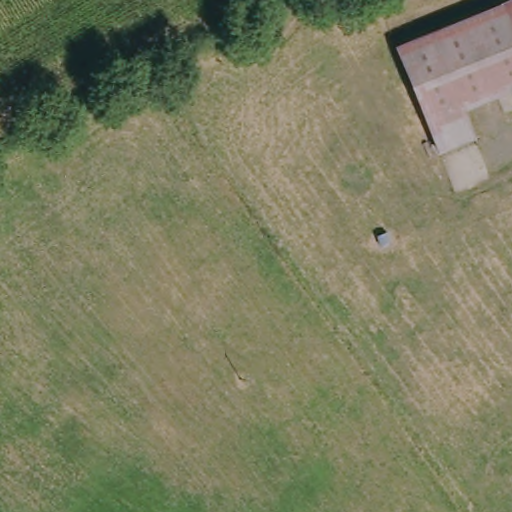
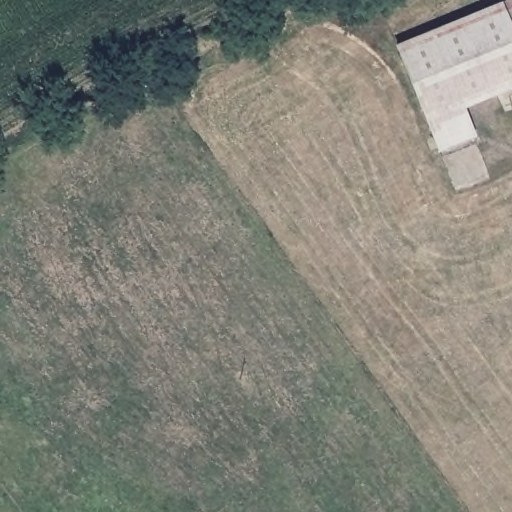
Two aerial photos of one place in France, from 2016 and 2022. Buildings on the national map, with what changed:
unchanged [(512,2),(512,68),(493,75),(502,105),(431,129),(401,42),(512,2)]

